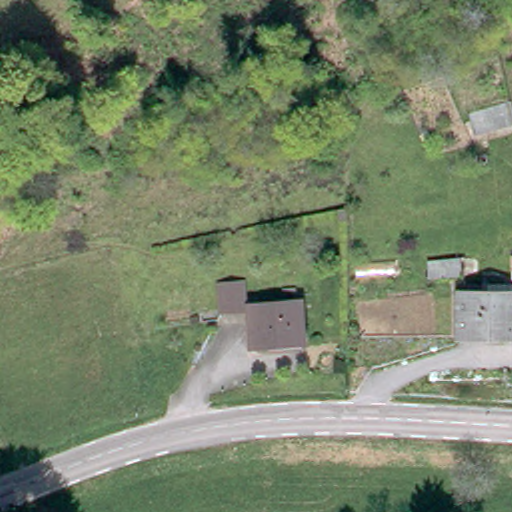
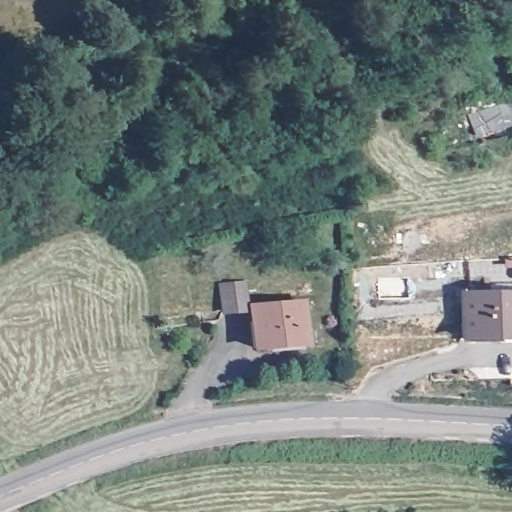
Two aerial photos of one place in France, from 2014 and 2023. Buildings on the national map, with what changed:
unchanged [(512,249),(512,278),(507,278),(505,250),(512,249)]
unchanged [(215,281),(237,278),(240,308),(217,310),(215,281)]
unchanged [(512,331),(454,333),(452,291),(479,290),(479,281),(500,281),(501,289),(512,288),(512,331)]
unchanged [(297,301),(302,340),(249,346),(245,305),(297,301)]

